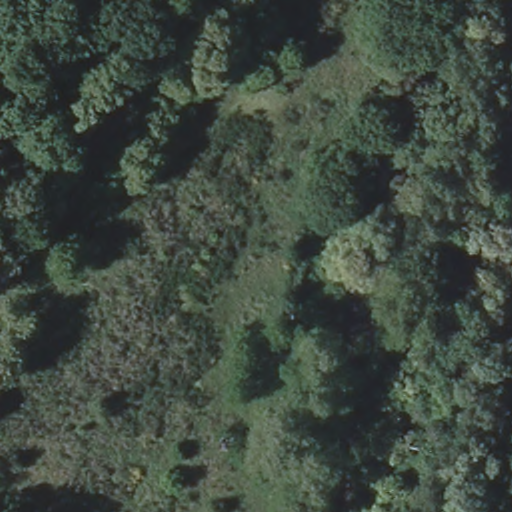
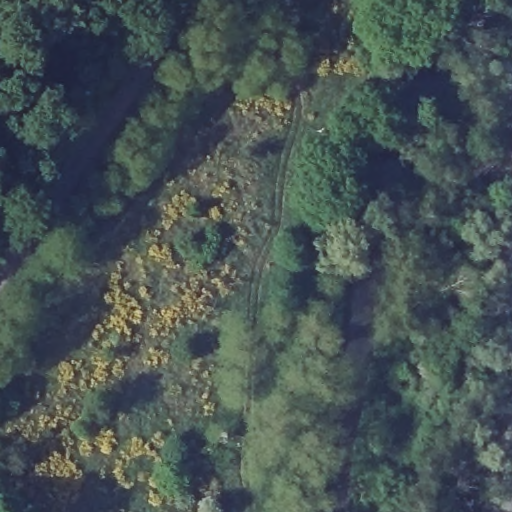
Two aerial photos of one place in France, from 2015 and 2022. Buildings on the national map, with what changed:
unchanged [(254,217),(280,232),(260,265),(235,251),(254,217)]

